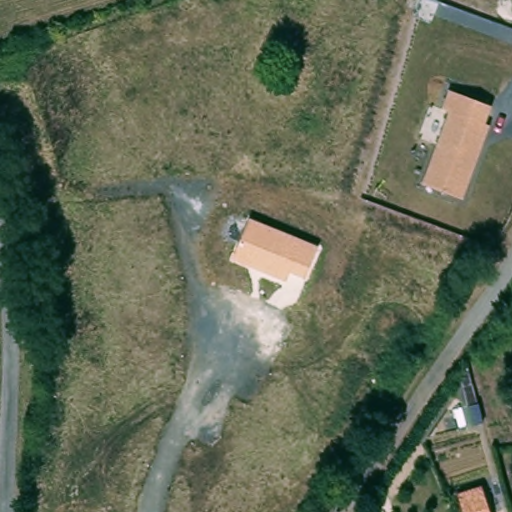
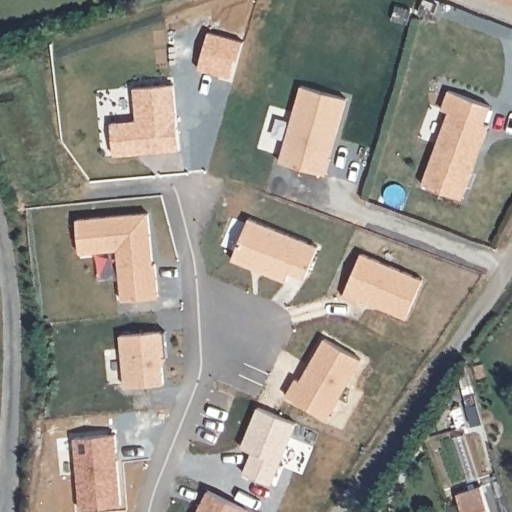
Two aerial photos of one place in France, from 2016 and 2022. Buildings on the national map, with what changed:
new [(115,155),(111,121),(136,118),(134,87),(175,83),(180,150),(115,155)]
new [(280,161),(301,86),(347,99),(326,175),(280,161)]
unchanged [(421,184),(448,111),(440,110),(448,90),(490,105),(483,124),(489,127),(461,199),(421,184)]
new [(116,251),(80,254),(77,218),(149,212),(153,265),(156,265),(159,297),(121,300),(116,251)]
unchanged [(317,247),(305,278),(289,272),(285,280),(232,258),(250,220),(317,247)]
new [(342,296),(362,252),(423,279),(406,319),(360,298),(358,302),(342,296)]
new [(120,334),(165,330),(167,360),(163,366),(165,384),(124,386),(120,334)]
new [(327,419),(285,395),(295,378),(300,380),(324,338),(361,360),(327,419)]
new [(271,485),(242,473),(252,452),(240,446),(257,406),(296,423),(271,485)]
new [(74,438),(117,435),(121,506),(79,508),(74,438)]
unchanged [(467,512),(461,491),(485,484),(493,512),(467,512)]
new [(249,511),(248,512),(196,512),(207,490),(249,511)]

